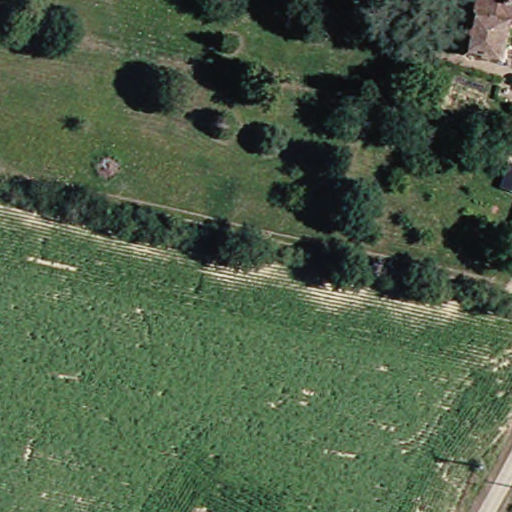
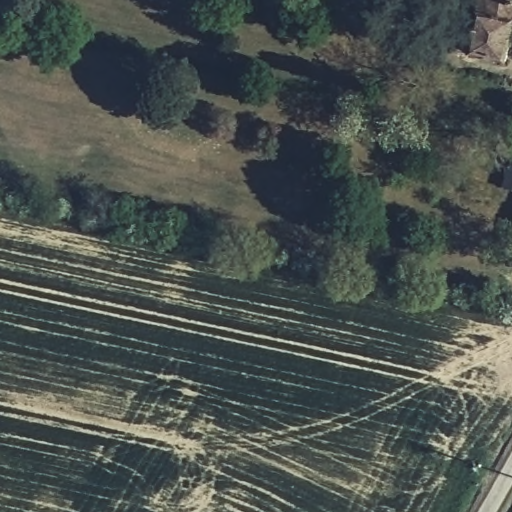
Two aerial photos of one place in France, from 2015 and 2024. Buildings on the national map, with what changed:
unchanged [(476,0),(512,0),(512,28),(507,27),(498,62),(465,57),(476,0)]

